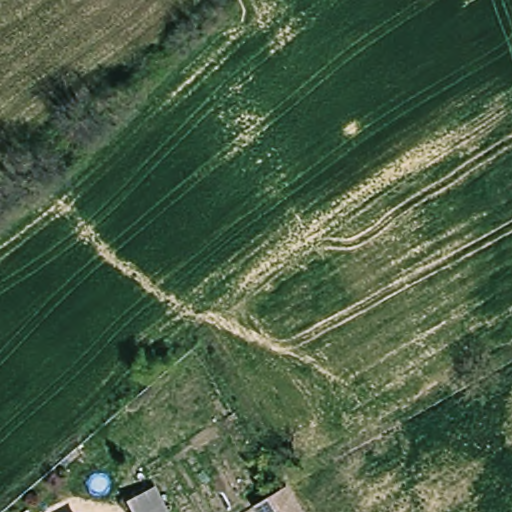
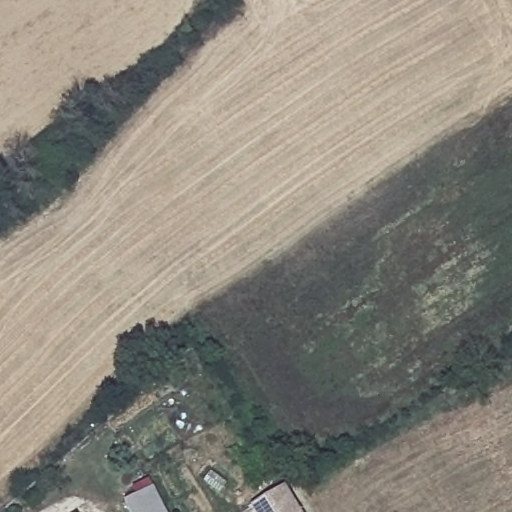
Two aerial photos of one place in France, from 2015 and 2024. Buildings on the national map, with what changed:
unchanged [(303,512),(258,512),(253,503),(286,483),(303,512)]
unchanged [(134,512),(128,501),(155,486),(169,512),(134,512)]

